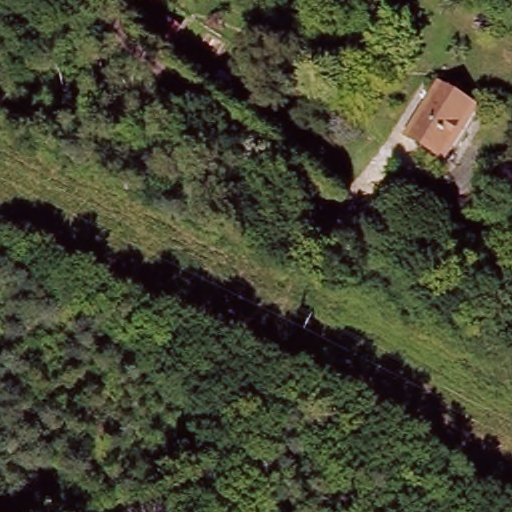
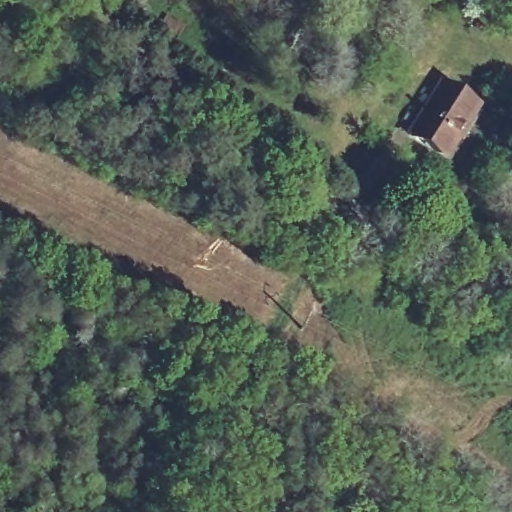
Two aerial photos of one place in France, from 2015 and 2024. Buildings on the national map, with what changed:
unchanged [(409,142),(441,91),(480,113),(450,164),(409,142)]

